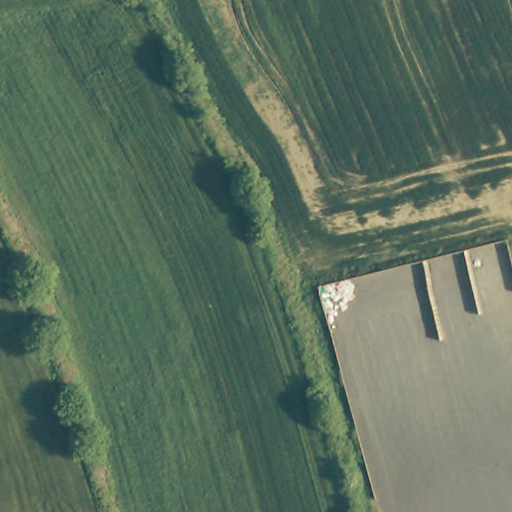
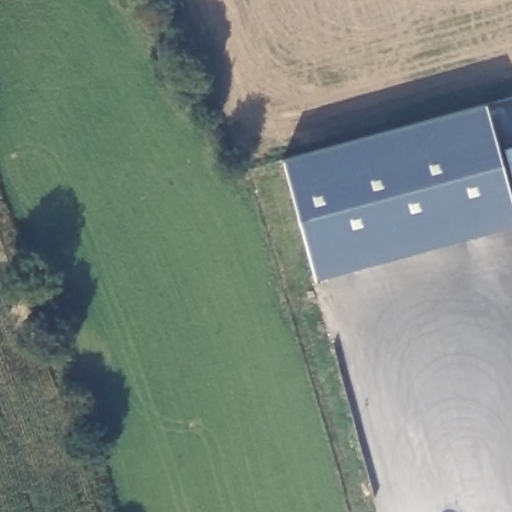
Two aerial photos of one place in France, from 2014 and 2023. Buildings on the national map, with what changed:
new [(512,195),(512,225),(316,278),(283,159),(487,103),(512,195)]

